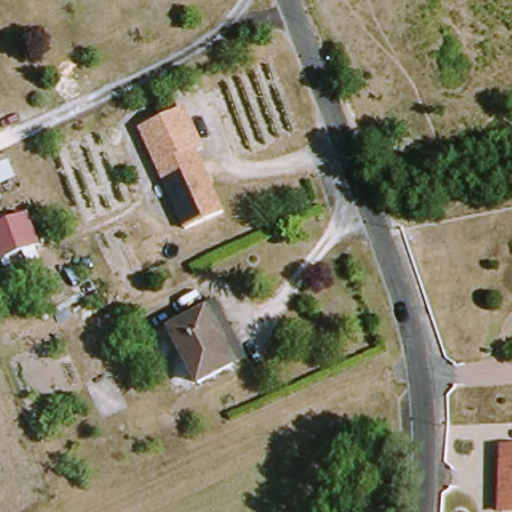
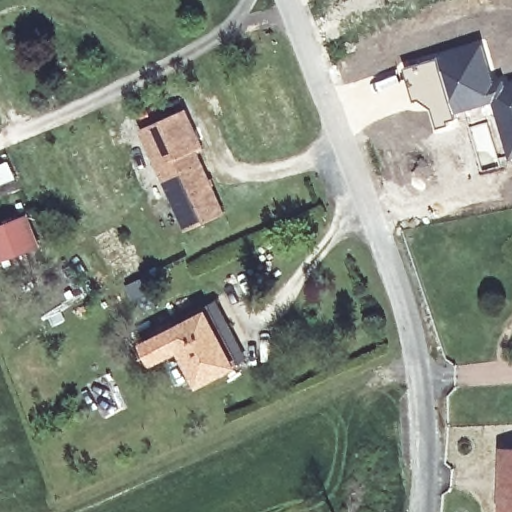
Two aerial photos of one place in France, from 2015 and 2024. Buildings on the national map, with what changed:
new [(482,37),(496,80),(512,76),(512,156),(510,156),(492,101),(455,113),(437,53),(482,37)]
new [(401,72),(400,68),(437,53),(455,113),(457,118),(436,125),(431,110),(418,99),(413,101),(405,79),(400,81),(398,74),(401,72)]
unchanged [(196,240),(150,137),(195,118),(211,155),(205,158),(234,223),(196,240)]
unchanged [(13,226),(0,231),(0,198),(2,198),(13,226)]
unchanged [(1,264),(0,260),(0,231),(13,226),(33,218),(45,246),(1,264)]
unchanged [(240,365),(222,373),(194,316),(190,308),(208,300),(240,365)]
unchanged [(222,373),(225,377),(186,396),(161,345),(177,338),(172,326),(194,316),(222,373)]
unchanged [(502,448),(512,448),(512,512),(501,512),(502,448)]

